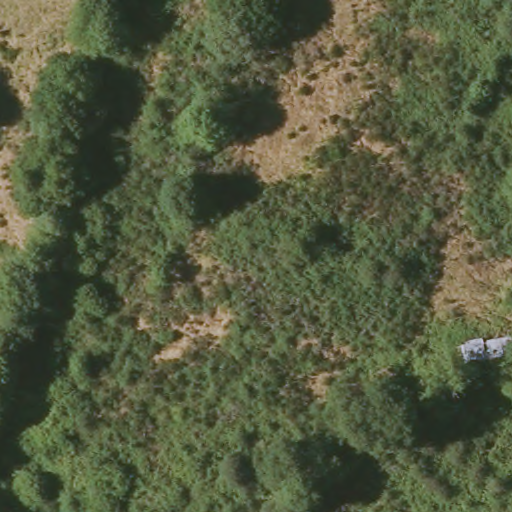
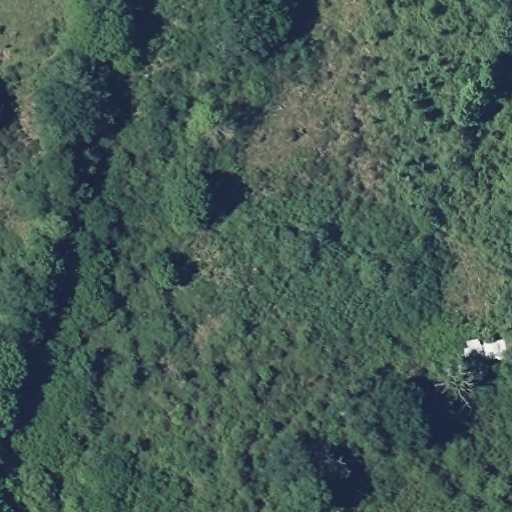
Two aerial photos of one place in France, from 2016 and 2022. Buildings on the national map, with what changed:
unchanged [(488,339),(494,344),(512,341),(512,360),(468,368),(458,348),(488,339)]

